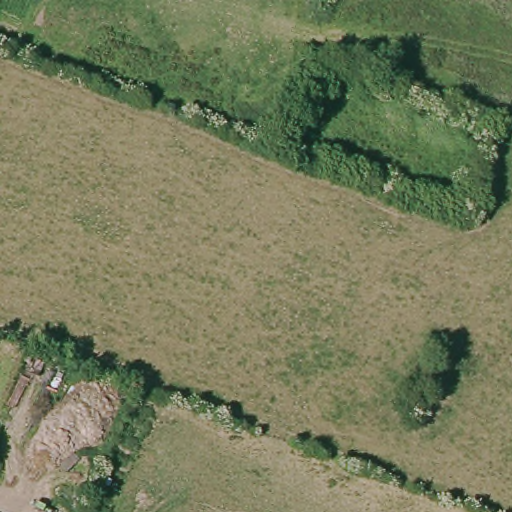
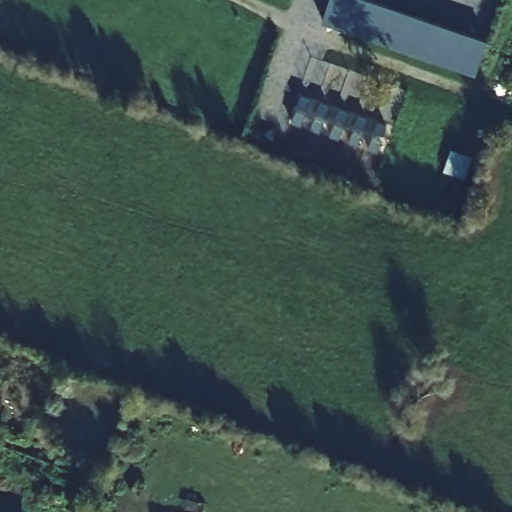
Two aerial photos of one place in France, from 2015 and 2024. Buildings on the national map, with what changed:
new [(331,0),(372,0),(488,40),(477,75),(323,22),(331,0)]

